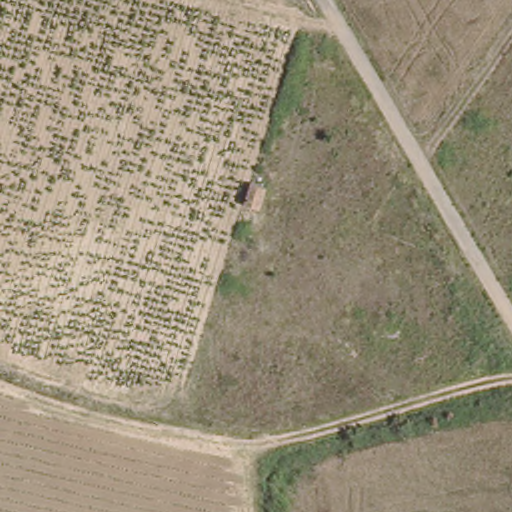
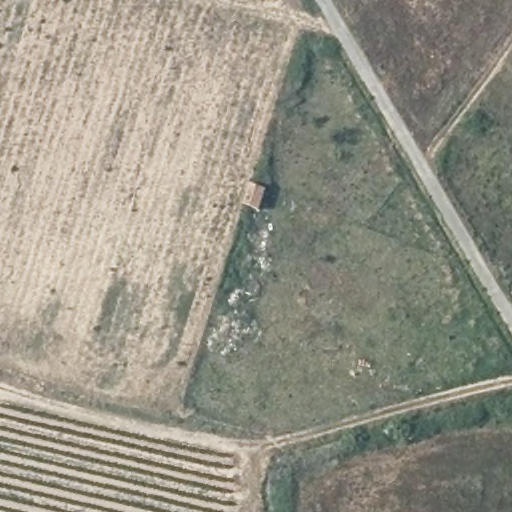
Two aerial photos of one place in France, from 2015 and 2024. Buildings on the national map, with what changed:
unchanged [(245,212),(251,189),(265,194),(259,215),(245,212)]

